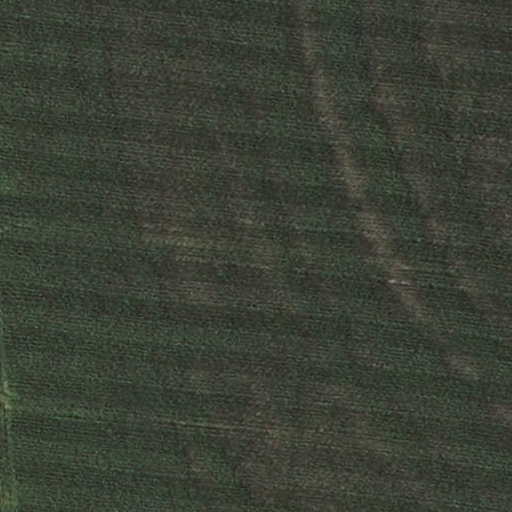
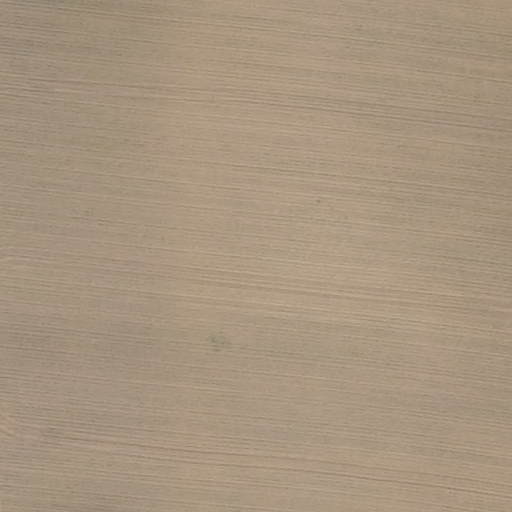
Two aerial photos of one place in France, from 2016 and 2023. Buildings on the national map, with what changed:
[]

